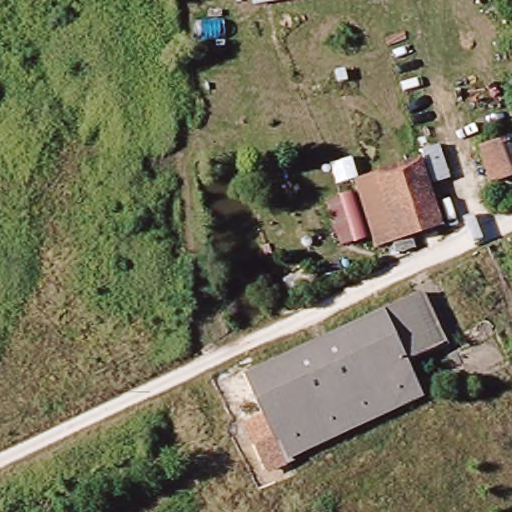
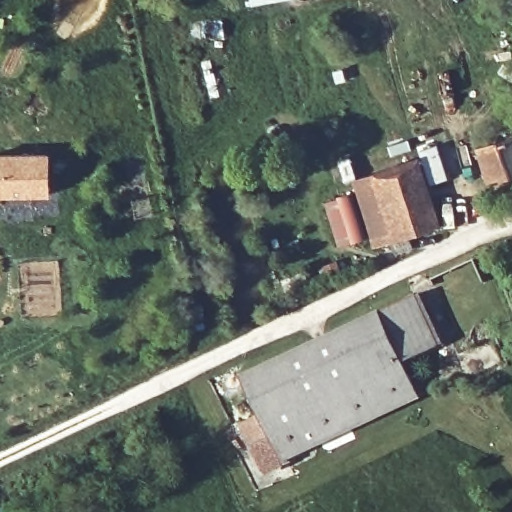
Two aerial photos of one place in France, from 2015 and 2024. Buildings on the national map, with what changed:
new [(252,6),(250,0),(287,0),(252,6)]
unchanged [(512,139),(512,177),(484,186),(473,152),(512,139)]
new [(0,194),(0,155),(46,154),(47,194),(0,194)]
unchanged [(422,160),(441,227),(409,236),(412,248),(395,253),(392,240),(376,245),(360,191),(357,178),(359,177),(422,160)]
unchanged [(418,391),(290,457),(286,450),(267,460),(257,440),(275,431),(247,372),(418,289),(442,340),(403,358),(418,391)]

